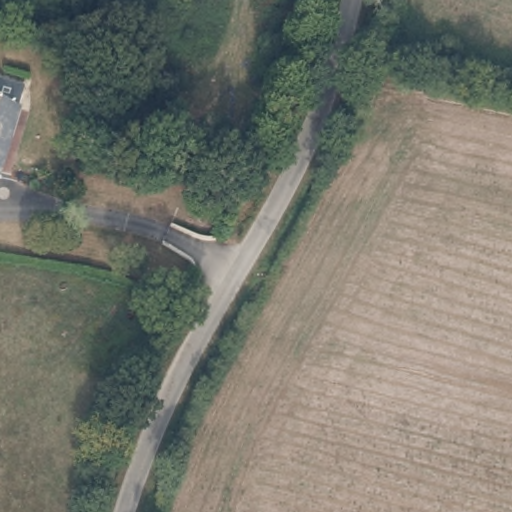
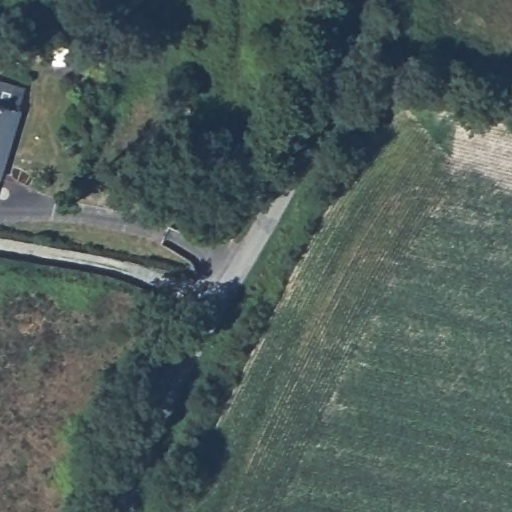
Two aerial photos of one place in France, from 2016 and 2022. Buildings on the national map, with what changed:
unchanged [(0,168),(0,108),(16,112),(0,168)]

